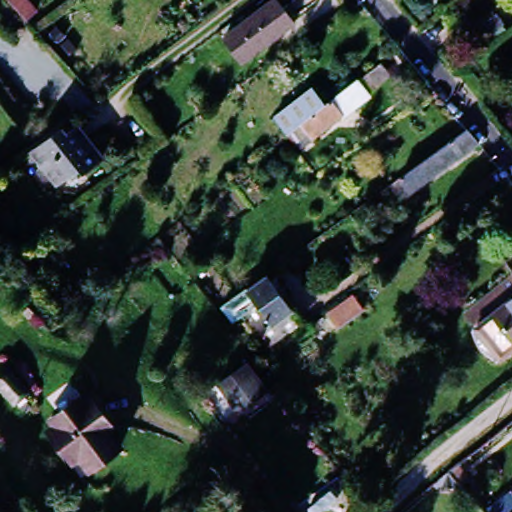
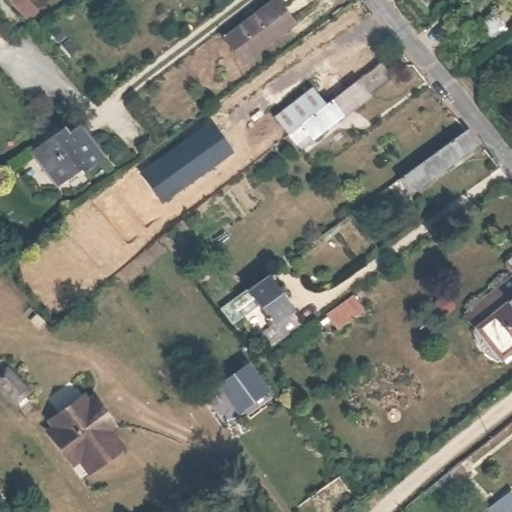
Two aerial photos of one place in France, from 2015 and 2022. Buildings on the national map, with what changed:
unchanged [(7,0),(27,0),(30,4),(18,13),(7,0)]
unchanged [(244,62),(225,38),(272,1),(291,26),(244,62)]
unchanged [(496,21),(503,31),(488,42),(481,32),(496,21)]
unchanged [(385,75),(365,90),(355,79),(375,62),(385,75)]
unchanged [(365,97),(298,156),(283,137),(272,124),(274,122),(288,110),(307,95),(318,108),(351,81),(365,97)]
new [(213,120),(232,151),(165,202),(145,171),(213,120)]
unchanged [(417,183),(410,174),(380,195),(373,189),(440,137),(454,126),(468,143),(455,153),(417,183)]
unchanged [(64,131),(70,138),(79,131),(106,164),(91,175),(87,170),(63,189),(34,155),(64,131)]
unchanged [(273,354),(263,341),(277,331),(262,310),(249,320),(238,306),(268,283),(304,331),(273,354)]
unchanged [(503,364),(493,363),(483,353),(483,345),(486,342),(475,326),(491,315),(493,318),(510,305),(506,301),(512,297),(512,368),(510,370),(503,364)]
unchanged [(368,312),(345,331),(334,318),(358,300),(368,312)]
unchanged [(219,387),(246,367),(264,392),(237,412),(219,387)]
unchanged [(0,394),(0,372),(4,368),(27,392),(11,406),(0,394)]
unchanged [(63,427),(58,422),(91,393),(114,419),(108,424),(122,440),(92,466),(86,459),(81,463),(55,434),(63,427)]
unchanged [(472,482),(462,490),(450,477),(460,468),(472,482)]
unchanged [(510,492),(512,495),(512,510),(510,512),(490,512),(488,510),(510,492)]

